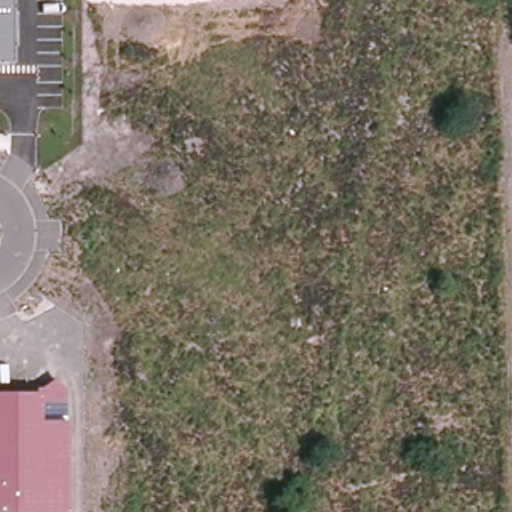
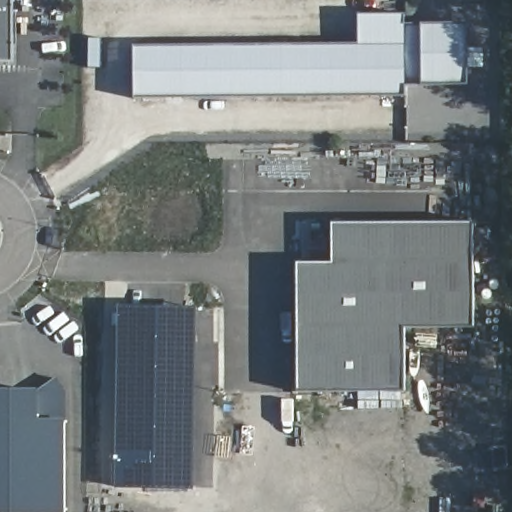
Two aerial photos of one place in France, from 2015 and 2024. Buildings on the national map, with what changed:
unchanged [(13,62),(0,63),(0,0),(12,0),(13,62)]
new [(136,98),(136,45),(359,45),(358,14),(406,14),(406,25),(407,85),(407,96),(136,98)]
new [(407,85),(406,25),(469,24),(470,84),(407,85)]
new [(475,326),(405,326),(406,391),(299,391),(299,262),(333,261),(332,223),(474,222),(475,326)]
new [(120,306),(197,308),(194,490),(116,489),(120,306)]
unchanged [(65,512),(0,512),(0,392),(36,392),(36,387),(43,387),(56,378),(63,388),(64,420),(65,512)]

